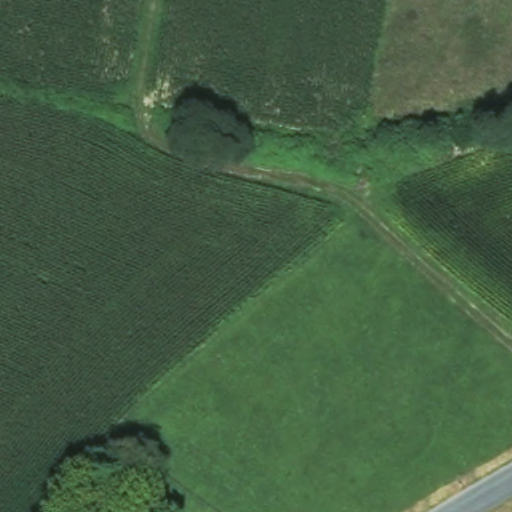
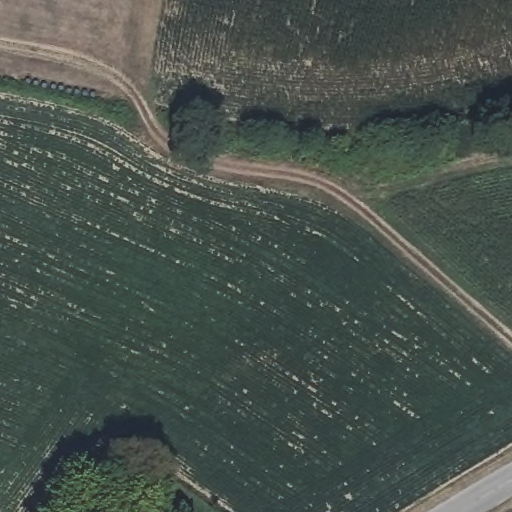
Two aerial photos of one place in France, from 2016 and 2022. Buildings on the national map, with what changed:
unchanged [(403,171),(402,155),(421,155),(421,171),(403,171)]

